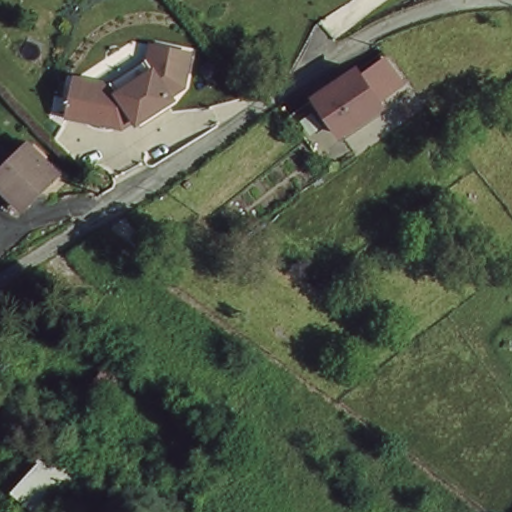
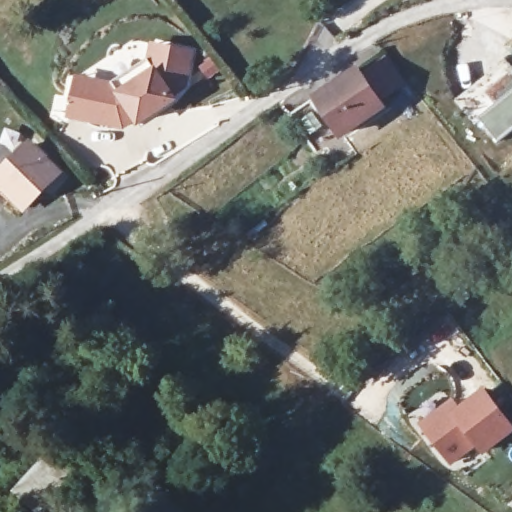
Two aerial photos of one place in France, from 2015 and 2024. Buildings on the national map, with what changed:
unchanged [(113,120),(65,108),(73,76),(75,70),(112,80),(148,59),(153,42),(159,44),(190,51),(182,85),(168,93),(171,96),(133,118),(131,114),(118,121),(113,120)]
new [(380,105),(357,76),(386,55),(406,81),(380,105)]
new [(500,140),(480,118),(495,104),(485,93),(512,71),(512,130),(500,140)]
unchanged [(383,109),(343,141),(314,104),(354,73),(383,109)]
unchanged [(22,209),(0,187),(0,178),(16,163),(30,149),(56,174),(22,209)]
new [(450,397),(455,404),(480,388),(511,428),(475,458),(467,449),(448,464),(431,445),(435,441),(419,422),(450,397)]
unchanged [(79,474),(64,489),(56,483),(27,509),(13,493),(40,467),(31,457),(49,441),(79,474)]

